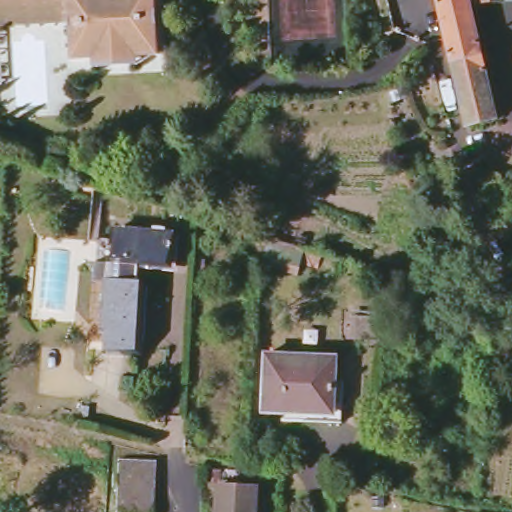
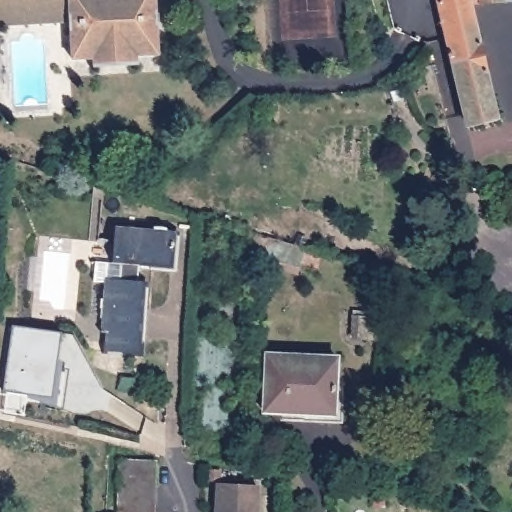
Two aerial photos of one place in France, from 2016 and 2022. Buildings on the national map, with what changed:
unchanged [(72,1),(49,2),(50,12),(0,15),(0,0),(158,0),(161,55),(75,59),(72,1)]
unchanged [(512,1),(480,4),(479,1),(469,1),(496,118),(467,125),(439,0),(512,0),(512,1)]
unchanged [(105,348),(107,329),(104,329),(109,286),(99,285),(100,262),(120,264),(122,229),(157,232),(157,227),(172,229),(171,235),(178,235),(175,266),(144,263),(142,285),(144,285),(137,351),(105,348)]
unchanged [(322,253),(319,266),(301,262),(304,249),(322,253)]
unchanged [(427,286),(431,270),(465,280),(460,296),(427,286)]
unchanged [(496,293),(512,301),(512,319),(490,307),(496,293)]
unchanged [(350,316),(380,316),(379,338),(350,338),(350,316)]
new [(70,359),(57,360),(63,360),(62,368),(68,369),(63,407),(57,404),(27,395),(4,392),(12,325),(62,332),(70,359)]
unchanged [(282,420),(283,412),(264,411),(267,354),(337,357),(337,381),(345,381),(344,423),(282,420)]
unchanged [(157,460),(155,512),(118,512),(120,459),(157,460)]
unchanged [(213,474),(214,466),(225,466),(225,475),(213,474)]
unchanged [(263,482),(261,512),(223,512),(225,480),(263,482)]

